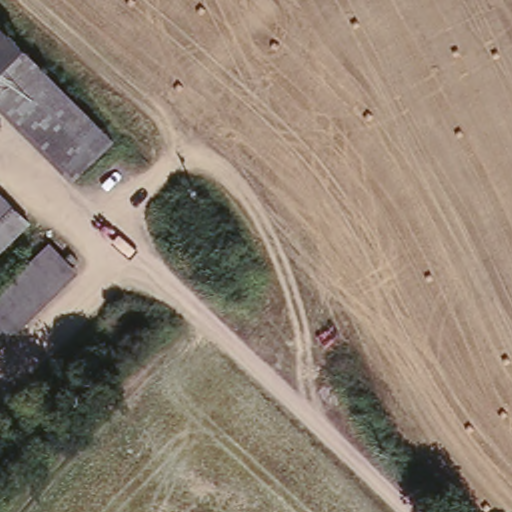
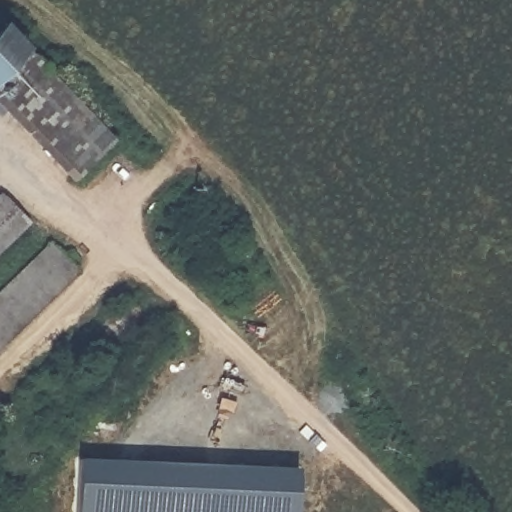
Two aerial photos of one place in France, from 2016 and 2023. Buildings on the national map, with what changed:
unchanged [(0,88),(0,47),(11,37),(31,57),(0,88)]
unchanged [(73,182),(0,101),(0,88),(31,57),(113,145),(73,182)]
unchanged [(29,212),(0,241),(0,186),(2,184),(29,212)]
unchanged [(73,269),(0,340),(0,285),(46,240),(73,269)]
new [(297,468),(294,512),(75,512),(77,458),(297,468)]

